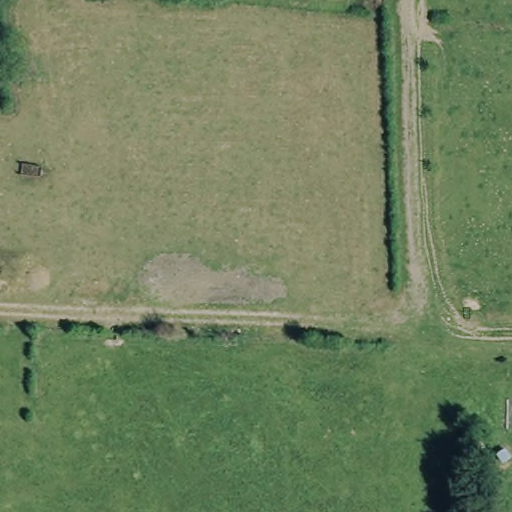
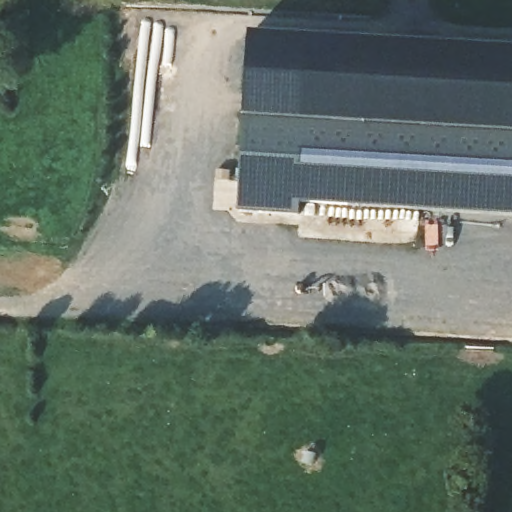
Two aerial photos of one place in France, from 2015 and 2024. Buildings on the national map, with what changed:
new [(300,215),(238,211),(244,119),(249,34),(512,51),(512,217),(301,203),(300,215)]

